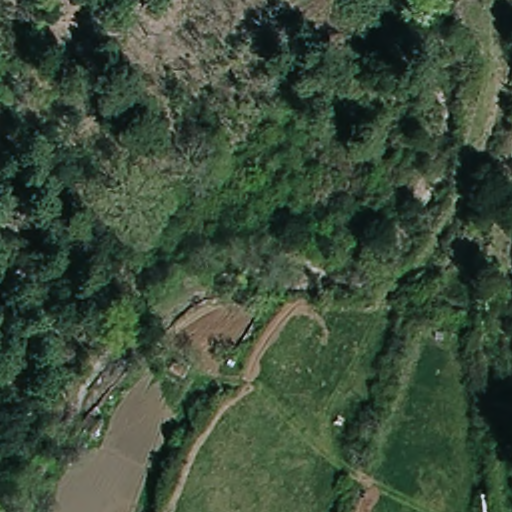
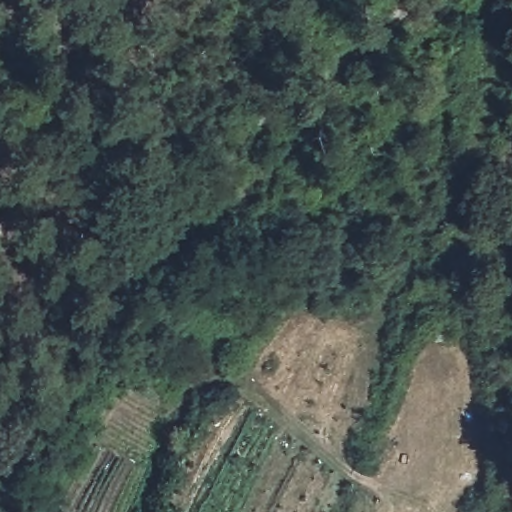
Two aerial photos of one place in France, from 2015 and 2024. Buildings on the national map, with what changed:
[]

